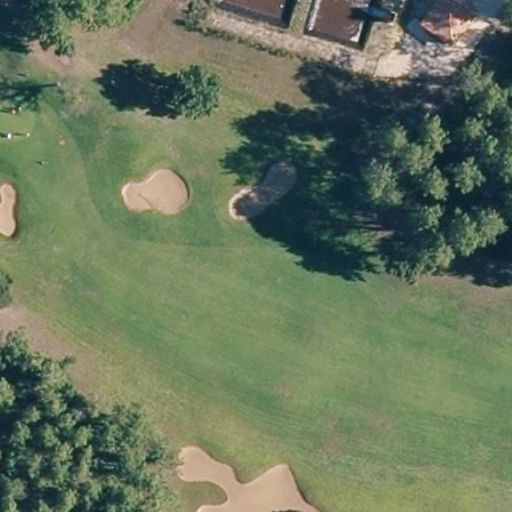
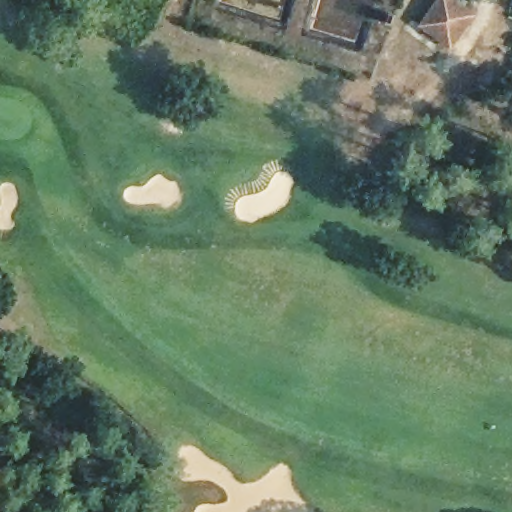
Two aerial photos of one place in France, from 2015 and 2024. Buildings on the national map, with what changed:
unchanged [(451,45),(419,21),(435,0),(462,0),(477,11),(451,45)]

